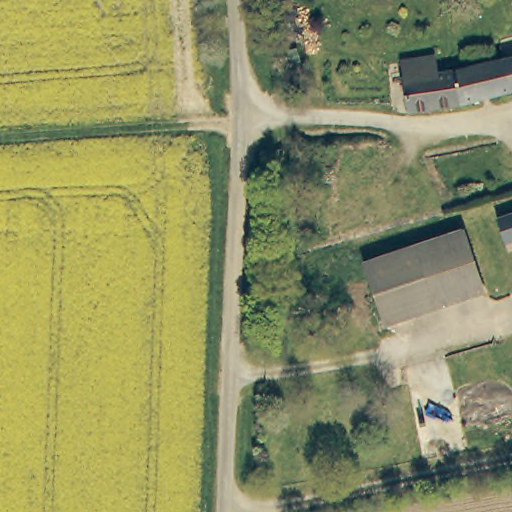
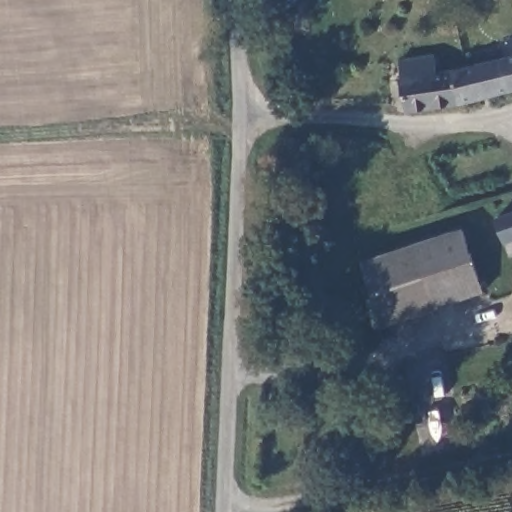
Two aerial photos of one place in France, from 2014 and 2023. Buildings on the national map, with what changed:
unchanged [(403,63),(440,56),(444,73),(462,70),(511,57),(512,60),(512,92),(472,102),(410,113),(403,81),(407,81),(403,63)]
unchanged [(512,57),(512,60),(511,57),(512,57)]
unchanged [(487,219),(512,211),(512,237),(495,243),(487,219)]
unchanged [(454,231),(476,294),(404,320),(381,256),(454,231)]
unchanged [(404,320),(377,329),(355,266),(381,256),(404,320)]

